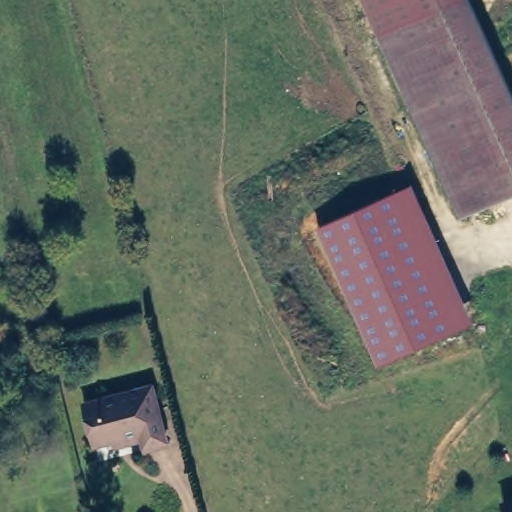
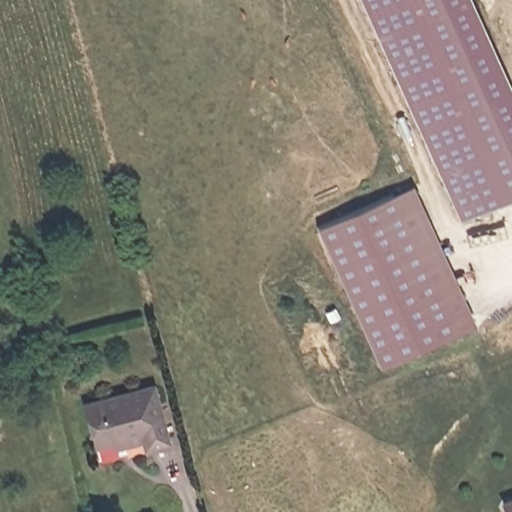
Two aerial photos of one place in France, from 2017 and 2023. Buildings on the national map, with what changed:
unchanged [(378,35),(361,0),(456,0),(443,6),(378,35)]
unchanged [(378,35),(442,7),(458,0),(468,0),(512,97),(512,194),(461,217),(378,35)]
unchanged [(474,322),(379,365),(317,228),(413,185),(474,322)]
unchanged [(114,445),(94,450),(84,410),(151,392),(166,450),(145,455),(143,445),(115,452),(114,445)]
unchanged [(512,512),(502,512),(499,503),(512,498),(512,512)]

